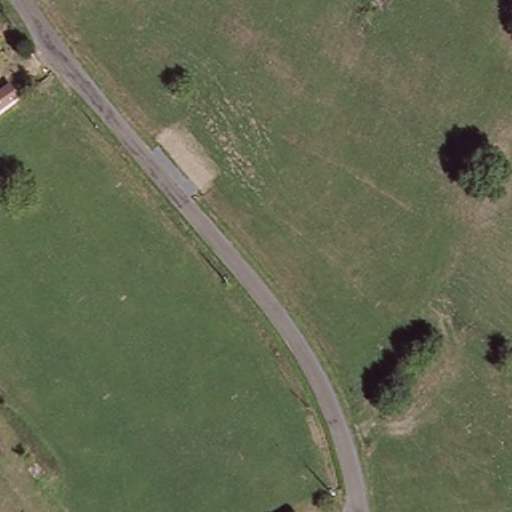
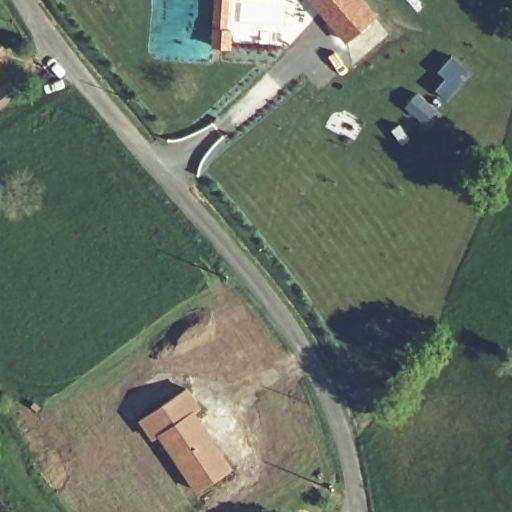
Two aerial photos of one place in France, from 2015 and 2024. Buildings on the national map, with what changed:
new [(348,44),(311,0),(364,0),(378,17),(348,44)]
unchanged [(1,55),(0,56),(0,54),(1,55)]
unchanged [(22,92),(6,104),(0,95),(0,89),(13,80),(22,92)]
new [(195,410),(234,468),(197,492),(159,438),(155,441),(141,420),(189,387),(202,406),(195,410)]

